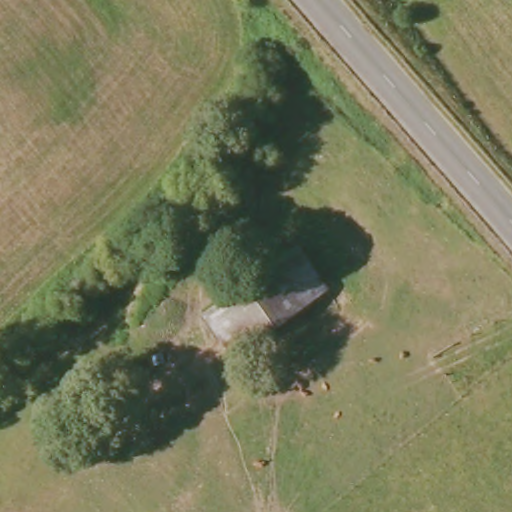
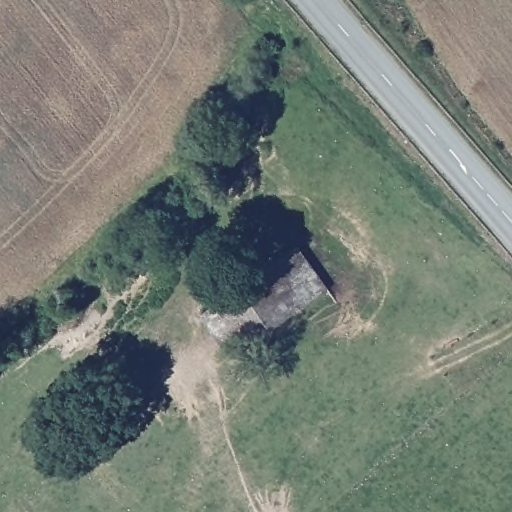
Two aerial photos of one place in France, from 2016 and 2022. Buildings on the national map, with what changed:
unchanged [(295,248),(327,291),(302,310),(270,266),(295,248)]
unchanged [(302,310),(233,359),(202,316),(270,266),(302,310)]

